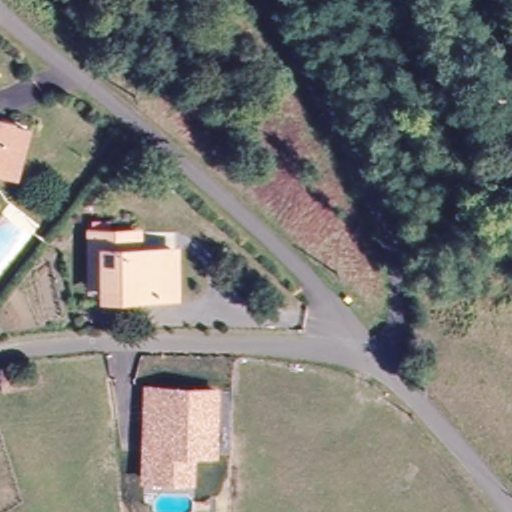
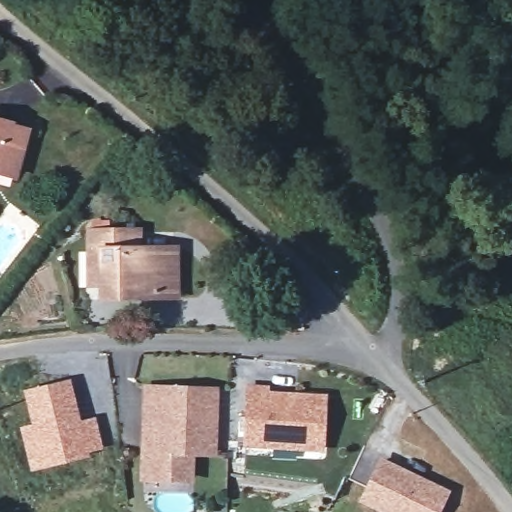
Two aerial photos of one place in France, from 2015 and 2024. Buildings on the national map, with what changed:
unchanged [(26,129),(16,175),(0,171),(0,123),(9,125),(26,129)]
unchanged [(93,257),(94,238),(141,242),(141,255),(179,257),(178,301),(178,304),(105,301),(106,293),(91,292),(93,257)]
unchanged [(224,388),(220,460),(197,460),(197,487),(139,483),(142,385),(224,388)]
new [(44,468),(43,466),(31,468),(22,430),(35,427),(28,398),(68,388),(78,430),(93,426),(99,452),(84,456),(84,459),(44,468)]
new [(298,451),(244,447),(248,391),(265,391),(265,397),(323,401),(320,440),(320,452),(298,451)]
new [(381,464),(443,496),(435,512),(380,512),(362,502),(381,464)]

